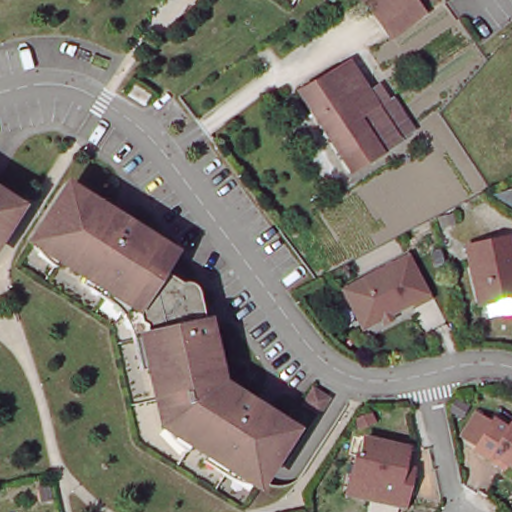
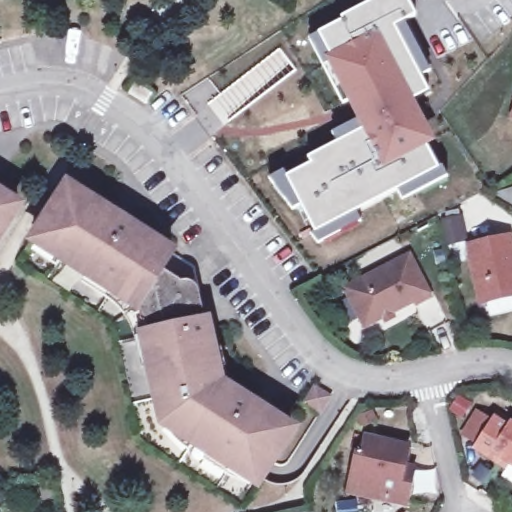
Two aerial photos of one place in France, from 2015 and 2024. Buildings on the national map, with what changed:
new [(436,142),(427,146),(440,169),(445,179),(402,200),(398,190),(357,212),(363,220),(318,244),(312,236),(316,233),(301,205),(293,210),(272,182),(283,172),(288,178),(313,165),(309,158),(339,144),(333,134),(359,120),(348,101),(343,103),(323,66),(310,40),(343,22),(342,19),(378,0),(408,0),(416,16),(405,23),(430,72),(421,76),(430,93),(413,101),(436,142)]
demolished [(416,0),(425,12),(389,35),(372,8),(383,0),(416,0)]
demolished [(376,100),(400,135),(402,139),(351,171),(302,91),(343,66),(342,62),(350,58),(370,89),(379,83),(386,95),(376,100)]
unchanged [(155,96),(148,106),(130,95),(137,85),(155,96)]
unchanged [(239,470),(230,464),(227,467),(188,443),(191,440),(182,434),(176,435),(160,424),(166,412),(163,398),(155,400),(141,337),(145,336),(143,324),(138,322),(135,309),(121,300),(120,293),(112,288),(109,292),(58,259),(61,254),(52,249),(45,250),(31,241),(66,189),(117,222),(120,218),(134,227),(131,231),(168,256),(158,271),(180,284),(182,295),(195,293),(202,322),(207,322),(210,337),(205,338),(216,385),(235,398),(237,394),(252,403),(250,407),(287,432),(253,484),(241,476),(239,470)]
unchanged [(0,237),(0,203),(16,213),(0,237)]
unchanged [(482,295),(470,238),(510,229),(512,238),(512,289),(482,295)]
unchanged [(427,296),(413,303),(411,298),(361,324),(342,286),(406,253),(427,296)]
unchanged [(329,400),(320,413),(307,405),(316,391),(329,400)]
unchanged [(512,424),(512,465),(492,453),(490,458),(476,449),(495,420),(508,428),(510,424),(512,424)]
unchanged [(350,495),(350,490),(358,456),(364,456),(368,439),(410,449),(405,472),(415,475),(408,503),(406,508),(350,495)]

